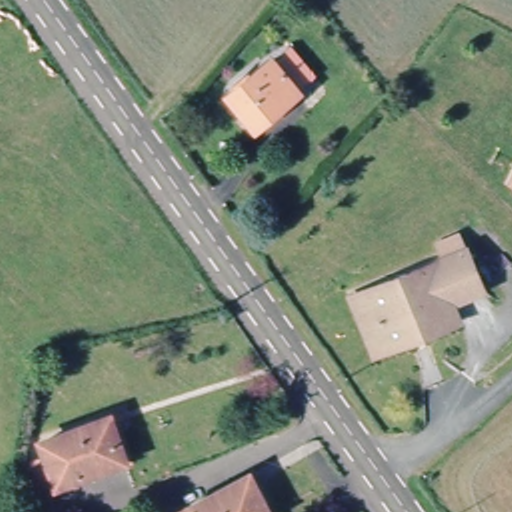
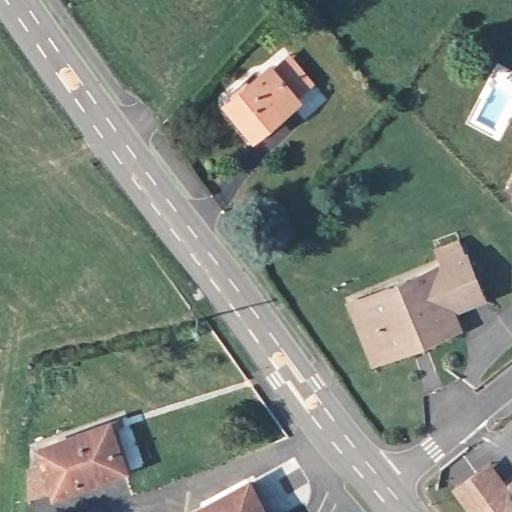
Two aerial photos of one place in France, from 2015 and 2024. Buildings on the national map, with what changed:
unchanged [(282,60),(306,95),(256,129),(237,101),(246,95),(238,83),(249,75),(252,80),(282,60)]
unchanged [(508,183),(512,176),(512,185),(508,183)]
unchanged [(390,351),(367,293),(466,248),(484,290),(454,302),(462,318),(436,330),(415,340),(390,351)]
unchanged [(376,357),(350,300),(367,293),(390,351),(376,357)]
unchanged [(58,490),(45,449),(112,427),(125,468),(58,490)]
new [(470,512),(452,489),(491,460),(507,482),(512,479),(512,512),(470,512)]
unchanged [(253,480),(261,497),(268,512),(187,512),(236,488),(253,480)]

